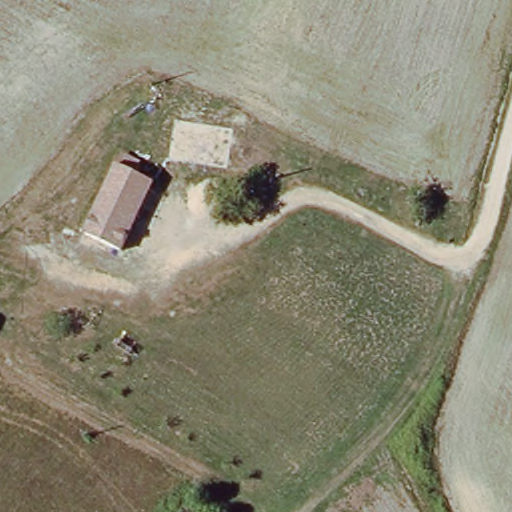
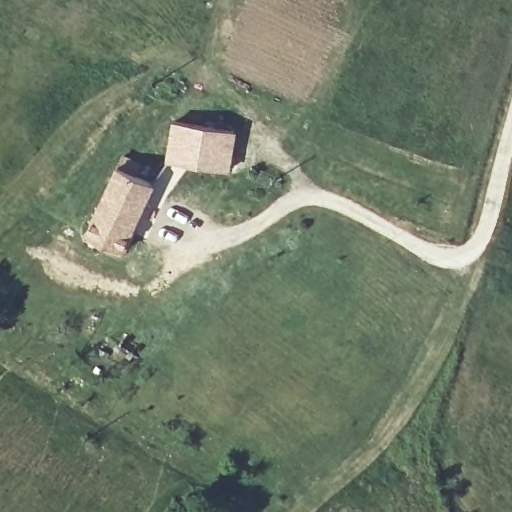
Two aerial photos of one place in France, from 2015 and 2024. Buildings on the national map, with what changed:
new [(236,130),(230,172),(165,162),(172,120),(236,130)]
unchanged [(82,236),(84,235),(119,165),(157,188),(120,256),(82,236)]
unchanged [(199,500),(212,512),(187,512),(199,500)]

